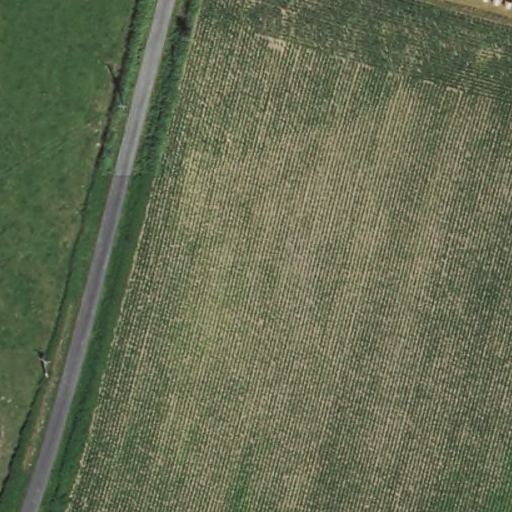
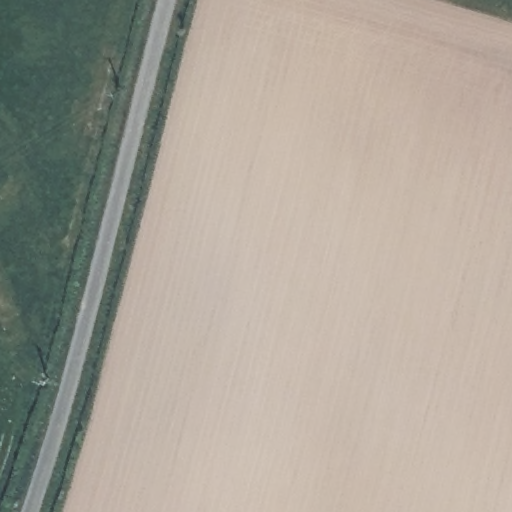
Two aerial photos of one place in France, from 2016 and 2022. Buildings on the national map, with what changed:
unchanged [(31,395),(35,378),(48,381),(43,398),(31,395)]

